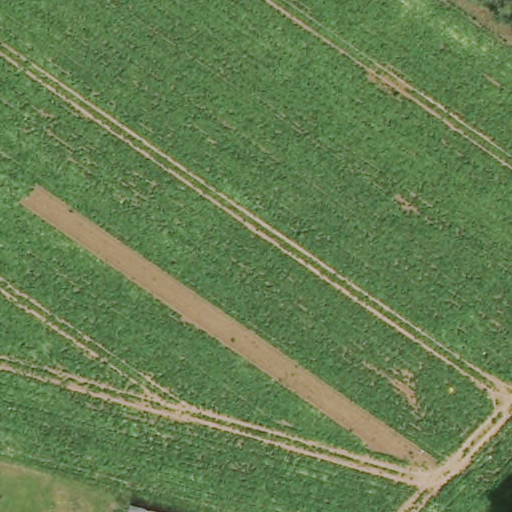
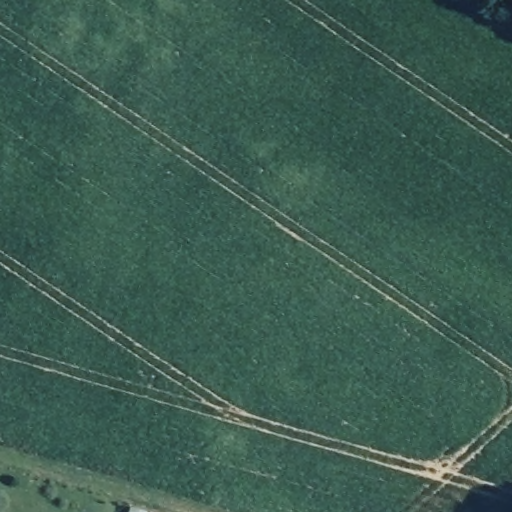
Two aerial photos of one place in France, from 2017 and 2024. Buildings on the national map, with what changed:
unchanged [(142,510),(141,512),(130,512),(132,507),(142,510)]

